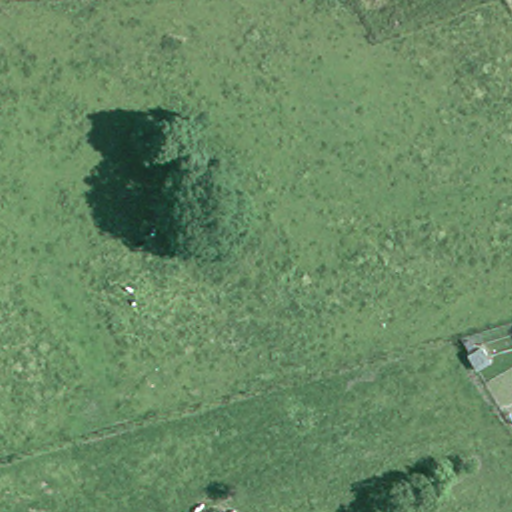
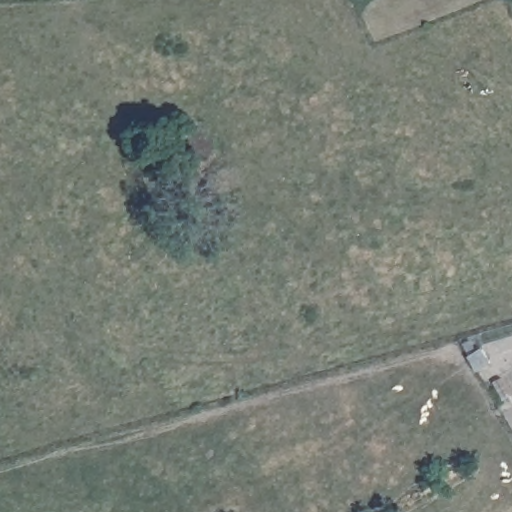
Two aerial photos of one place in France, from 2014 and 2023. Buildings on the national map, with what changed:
unchanged [(488,359),(475,367),(468,352),(480,345),(488,359)]

